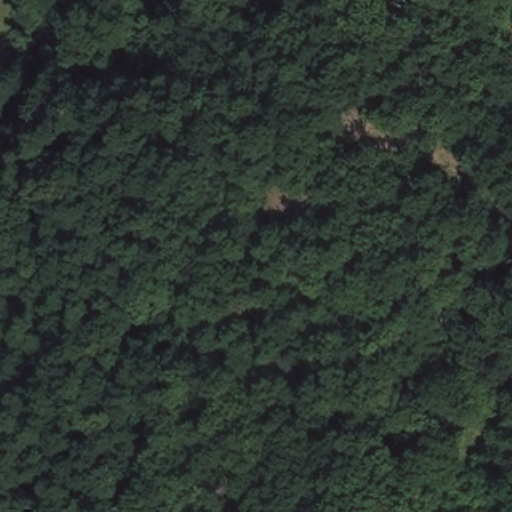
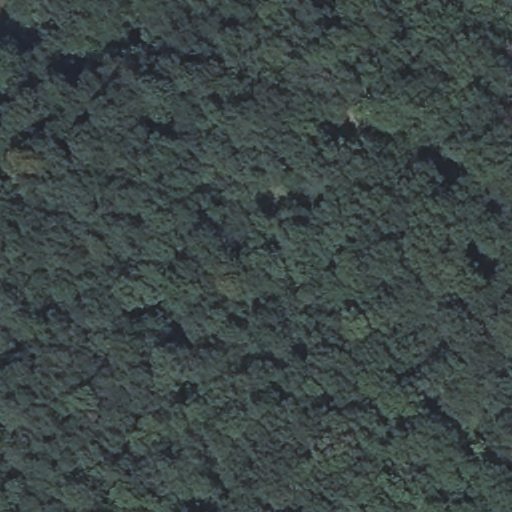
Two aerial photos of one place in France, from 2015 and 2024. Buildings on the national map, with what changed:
[]

